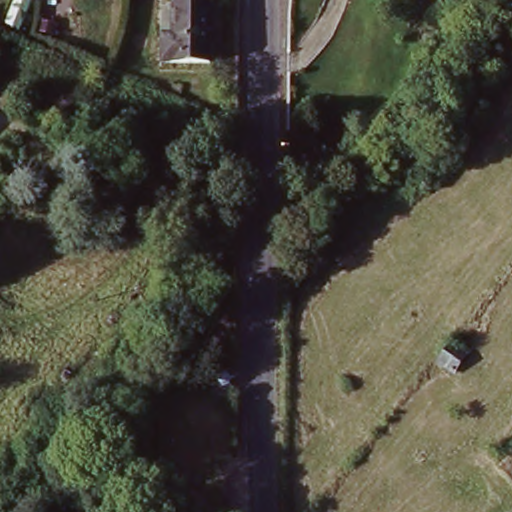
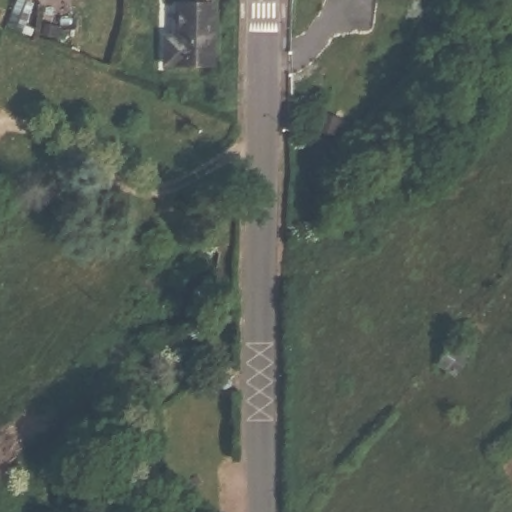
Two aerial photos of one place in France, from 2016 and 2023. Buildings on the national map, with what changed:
unchanged [(215,6),(213,66),(165,66),(165,49),(176,49),(177,6),(215,6)]
unchanged [(466,342),(452,359),(437,347),(451,330),(466,342)]

